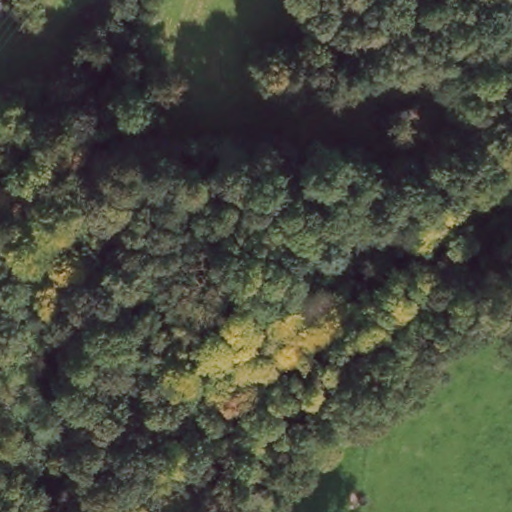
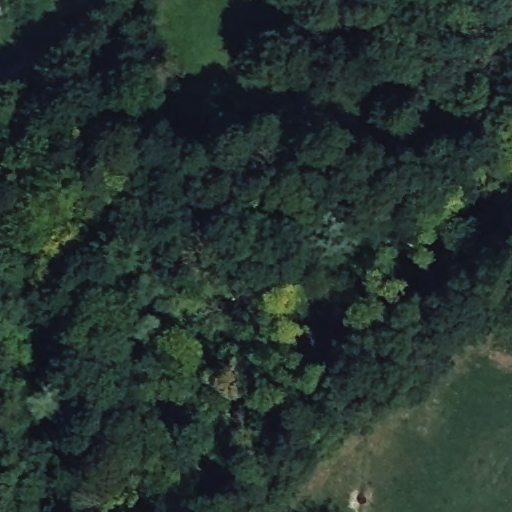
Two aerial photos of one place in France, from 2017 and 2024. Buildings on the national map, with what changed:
unchanged [(403,122),(368,129),(364,115),(400,107),(403,122)]

